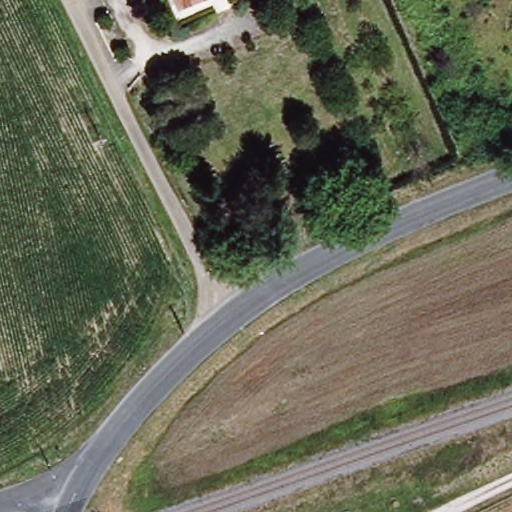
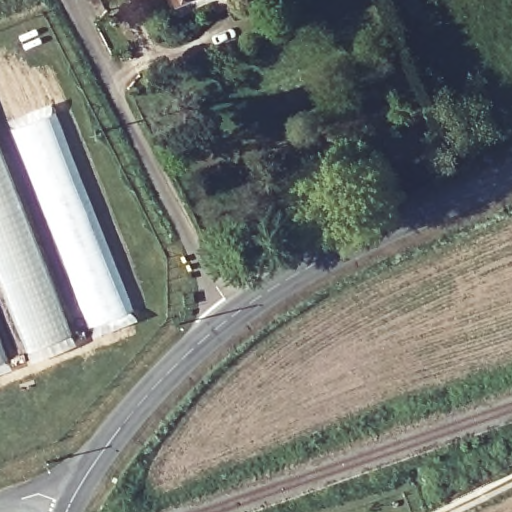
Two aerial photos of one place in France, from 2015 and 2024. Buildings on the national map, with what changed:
unchanged [(174,2),(174,0),(181,0),(174,2)]
new [(137,319),(96,334),(93,328),(74,335),(77,344),(29,364),(7,313),(0,296),(0,125),(51,103),(137,319)]
new [(0,365),(0,339),(8,361),(0,365)]

